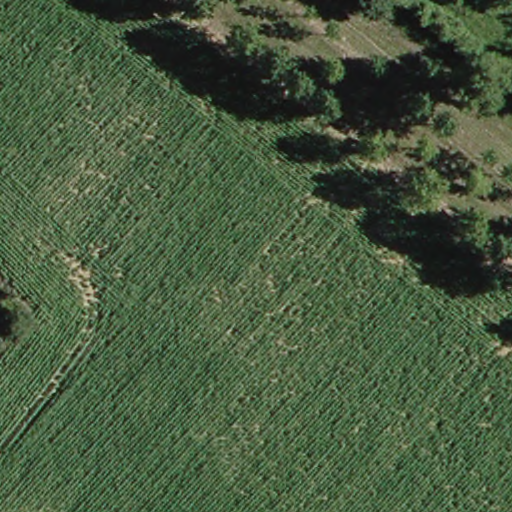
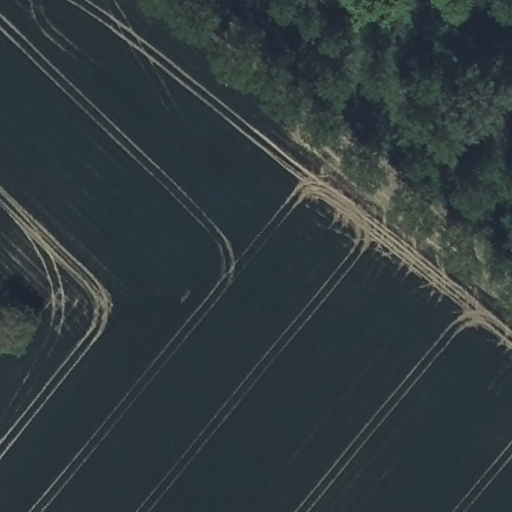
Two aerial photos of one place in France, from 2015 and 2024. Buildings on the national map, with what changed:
[]

